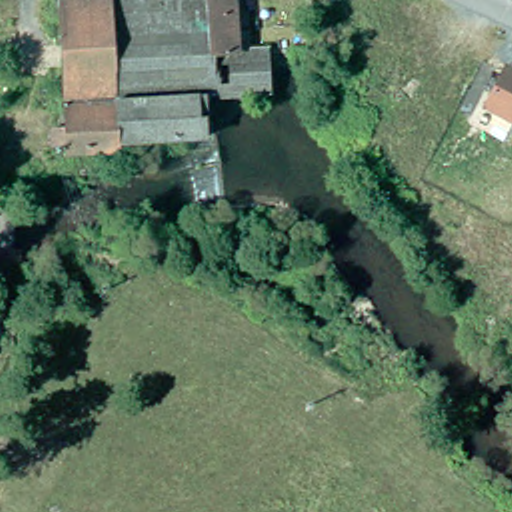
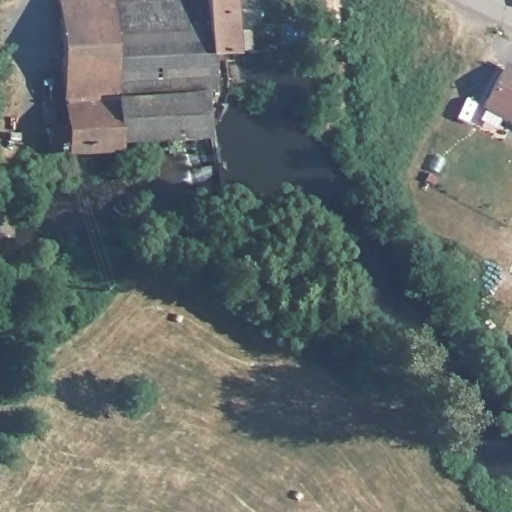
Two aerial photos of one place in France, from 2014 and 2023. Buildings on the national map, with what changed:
unchanged [(216,97),(207,97),(208,124),(202,124),(202,139),(177,139),(67,145),(67,142),(54,143),(53,124),(66,124),(59,0),(234,0),(238,48),(213,49),(216,97)]
unchanged [(275,94),(243,95),(216,97),(213,49),(238,48),(276,45),(290,44),(290,61),(292,93),(285,93),(275,94)]
unchanged [(480,110),(498,76),(512,83),(512,127),(480,110)]

